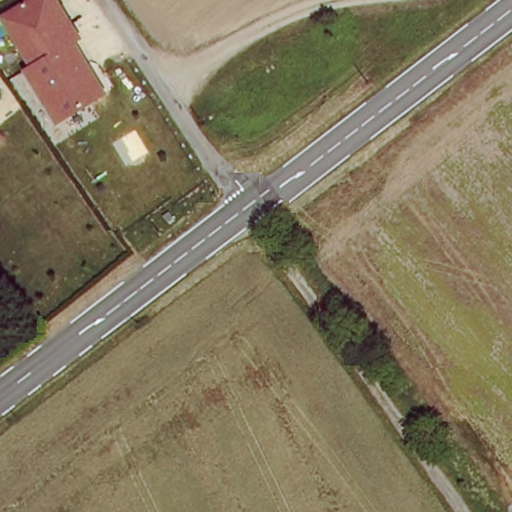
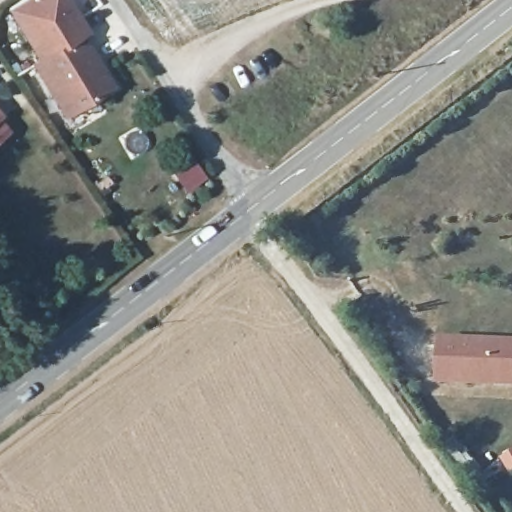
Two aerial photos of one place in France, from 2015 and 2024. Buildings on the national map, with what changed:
unchanged [(32,64),(39,59),(9,14),(31,0),(71,0),(92,34),(85,39),(116,89),(66,119),(32,64)]
unchanged [(0,112),(3,115),(0,118),(0,112)]
new [(438,339),(512,342),(512,389),(437,388),(438,339)]
new [(502,458),(512,452),(512,470),(510,472),(502,458)]

